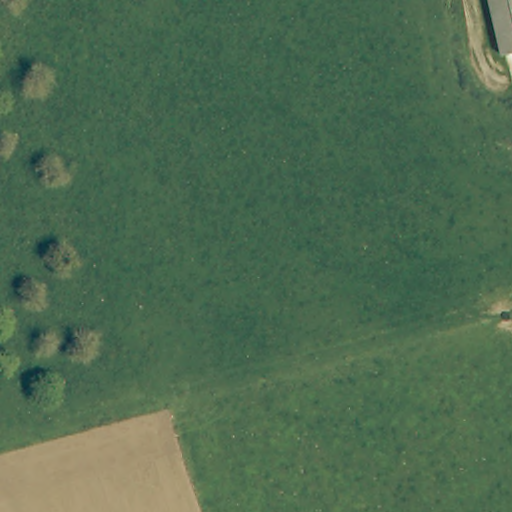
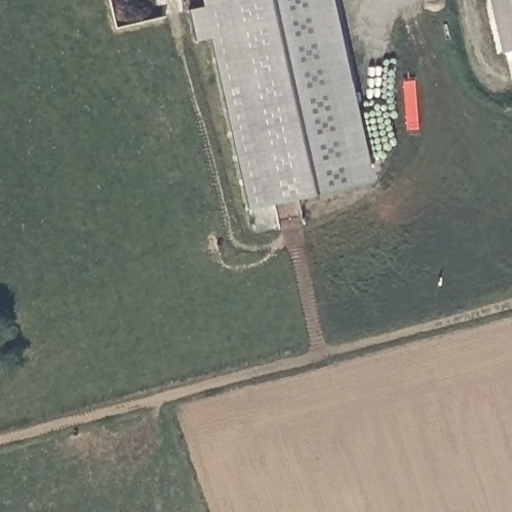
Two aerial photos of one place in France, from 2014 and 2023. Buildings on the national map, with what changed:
new [(247,209),(210,38),(195,41),(188,10),(201,7),(200,0),(331,0),(371,181),(247,209)]
unchanged [(512,51),(504,53),(492,0),(512,0),(512,51)]

